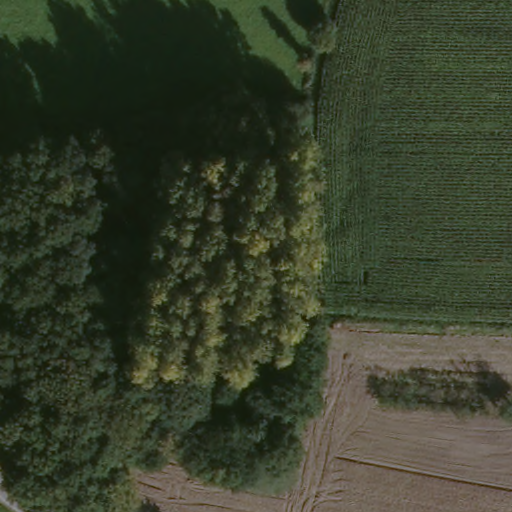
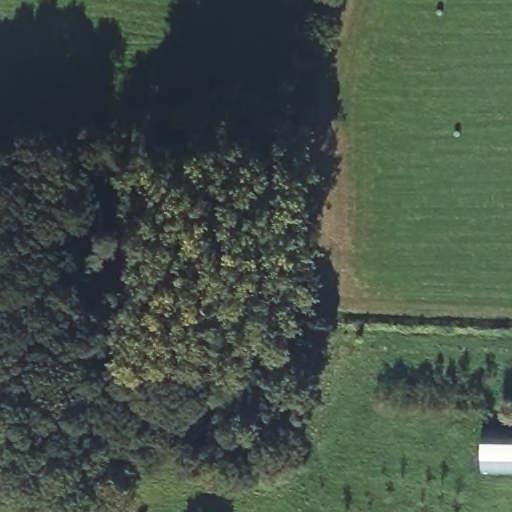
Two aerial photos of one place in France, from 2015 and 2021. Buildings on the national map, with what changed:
new [(483,473),(483,428),(512,428),(512,474),(483,473)]

